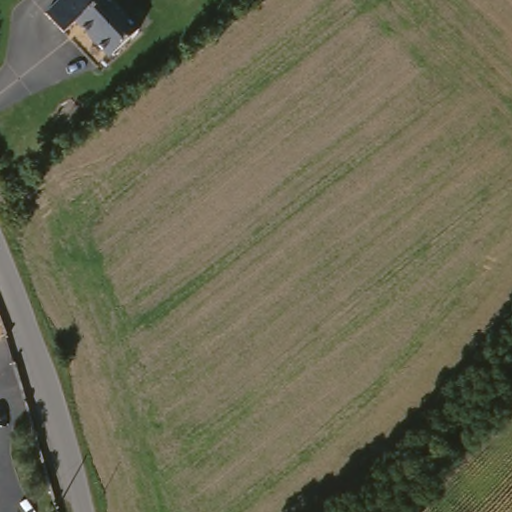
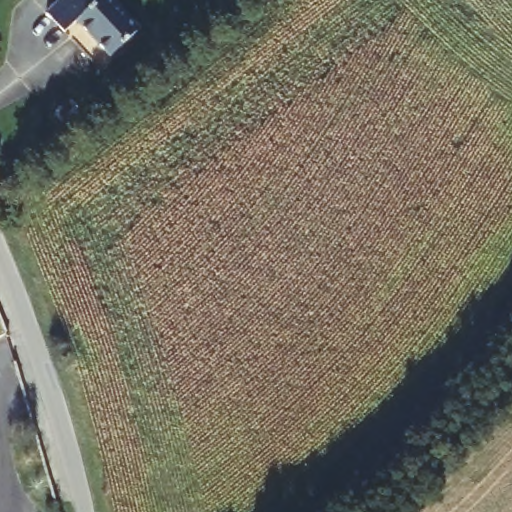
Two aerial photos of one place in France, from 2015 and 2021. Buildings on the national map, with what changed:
unchanged [(92,0),(104,0),(134,37),(113,54),(83,18),(67,31),(51,11),(65,0),(84,0),(87,4),(92,0)]

